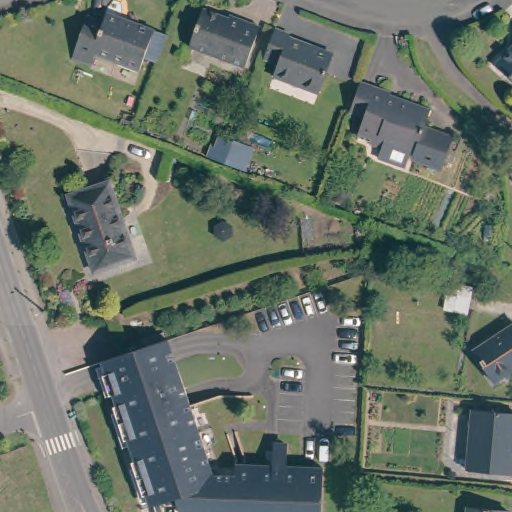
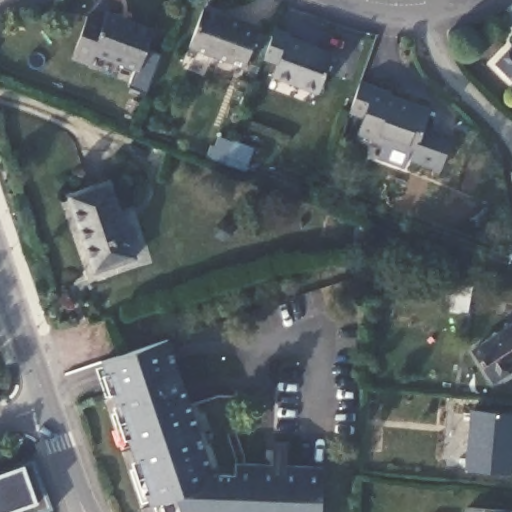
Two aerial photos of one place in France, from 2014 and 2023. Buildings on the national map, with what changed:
unchanged [(228,15),(258,25),(243,65),(187,45),(201,8),(227,17),(228,15)]
unchanged [(92,14),(108,20),(112,12),(157,29),(143,69),(122,60),(123,59),(101,50),(96,64),(77,56),(92,14)]
unchanged [(292,36),(336,53),(322,90),(277,74),(282,61),(267,56),(278,28),(293,34),(292,36)]
unchanged [(512,55),(512,70),(504,62),(512,55)]
unchanged [(443,167),(416,156),(417,151),(391,141),(386,146),(375,142),(373,131),(363,127),(367,115),(352,110),(353,110),(363,79),(394,90),(393,95),(433,109),(428,124),(456,134),(443,167)]
unchanged [(244,169),(223,161),(230,141),(251,150),(244,169)]
unchanged [(512,180),(511,180),(510,171),(512,171),(512,180)]
unchanged [(67,194),(107,180),(133,256),(93,270),(67,194)]
unchanged [(479,345),(512,332),(512,372),(492,380),(479,345)]
unchanged [(286,467),(322,469),(320,512),(165,512),(161,501),(150,505),(103,361),(170,340),(214,475),(236,476),(237,464),(273,466),(274,445),(287,446),(286,467)]
unchanged [(476,410),(512,414),(512,473),(471,469),(476,410)]
new [(33,460),(51,510),(44,512),(0,512),(0,474),(23,466),(33,460)]
unchanged [(507,512),(465,512),(465,505),(507,510),(507,512)]

